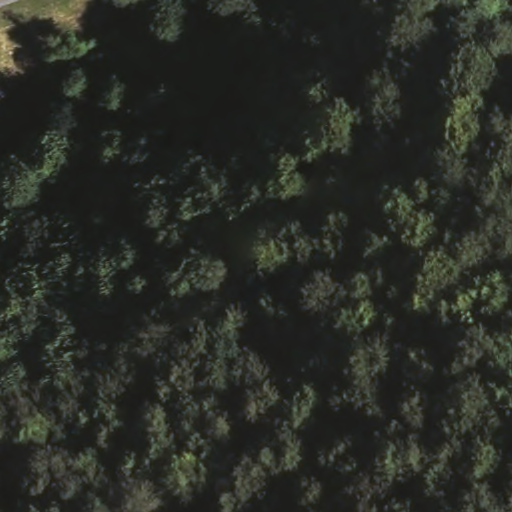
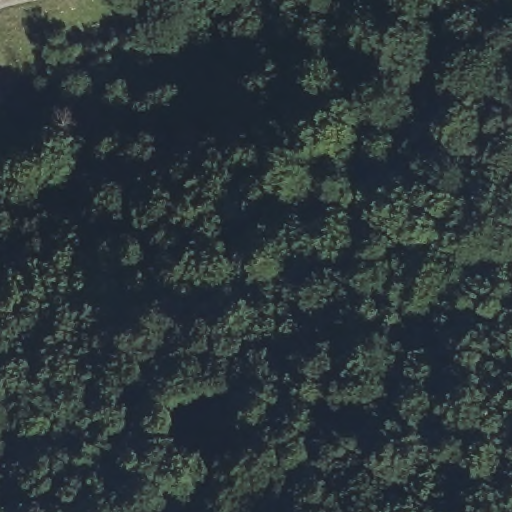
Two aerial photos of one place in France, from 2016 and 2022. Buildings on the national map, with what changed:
unchanged [(0,92),(5,102),(0,104),(0,92)]

